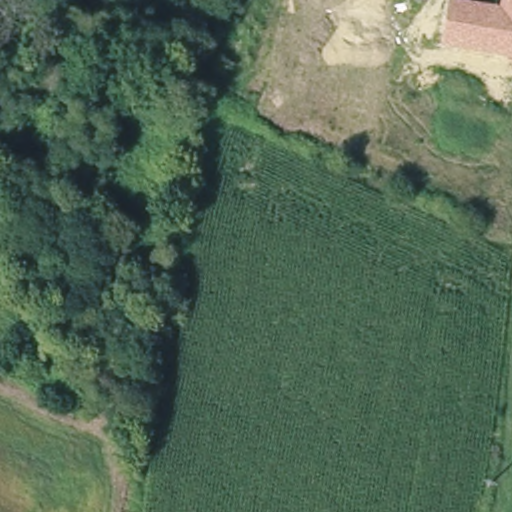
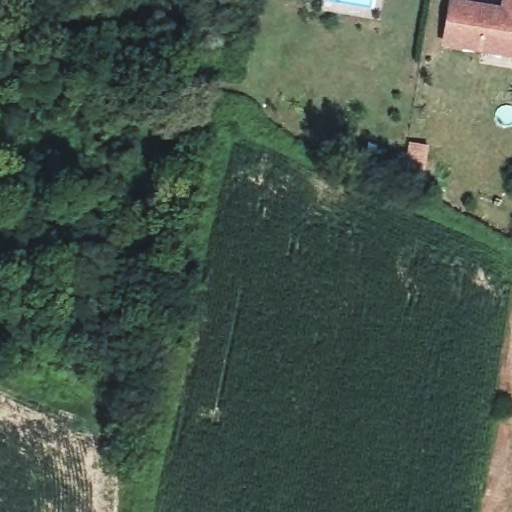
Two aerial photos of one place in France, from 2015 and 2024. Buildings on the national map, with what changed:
unchanged [(445,45),(451,3),(503,11),(505,0),(512,0),(512,56),(505,55),(445,45)]

